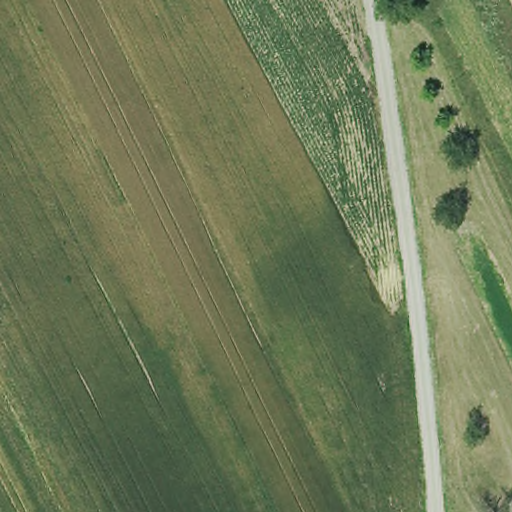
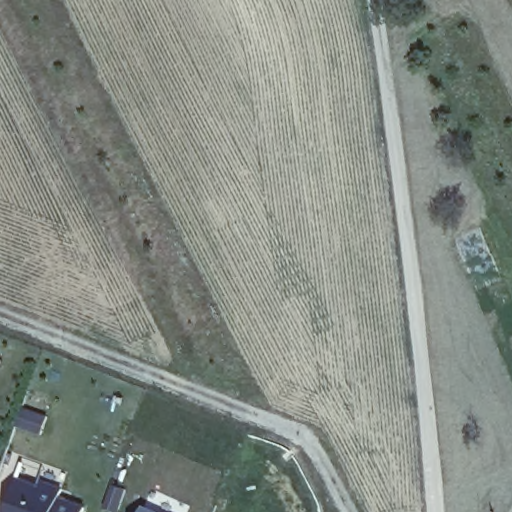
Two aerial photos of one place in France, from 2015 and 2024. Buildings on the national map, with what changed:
new [(80,512),(4,512),(16,477),(37,484),(40,478),(67,487),(63,497),(82,503),(80,512)]
new [(142,504),(162,512),(140,512),(142,504)]

